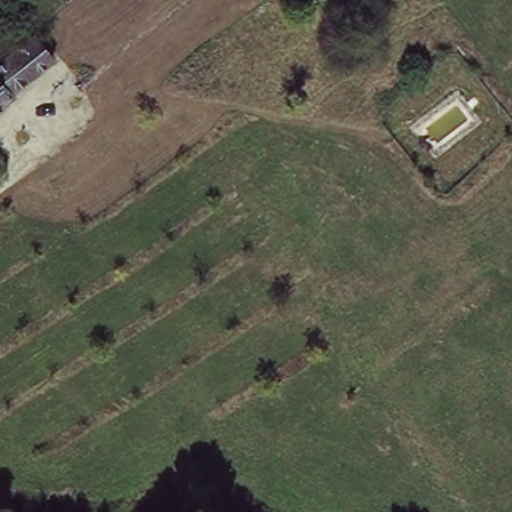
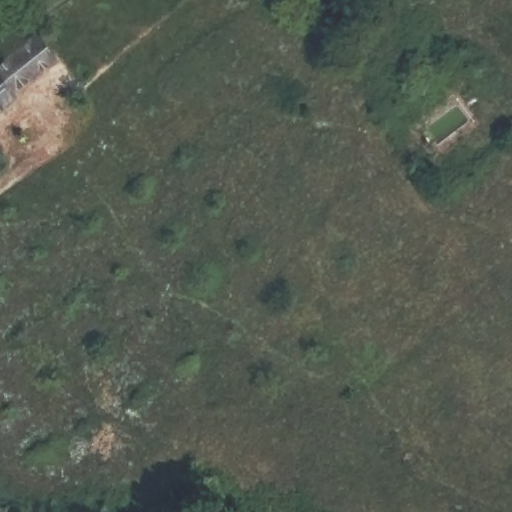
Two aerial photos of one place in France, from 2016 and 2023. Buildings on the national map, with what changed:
unchanged [(56,61),(9,97),(13,101),(0,112),(0,56),(33,30),(56,61)]

